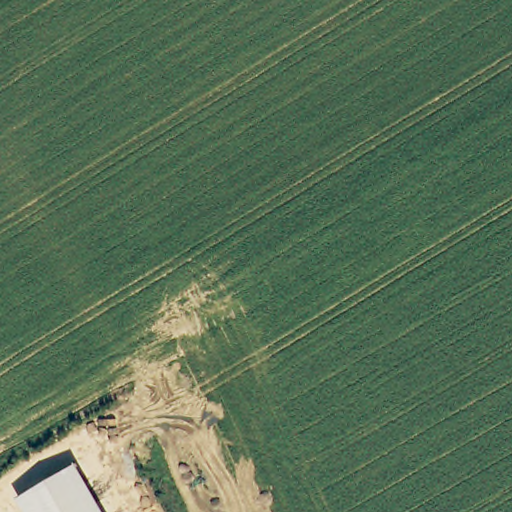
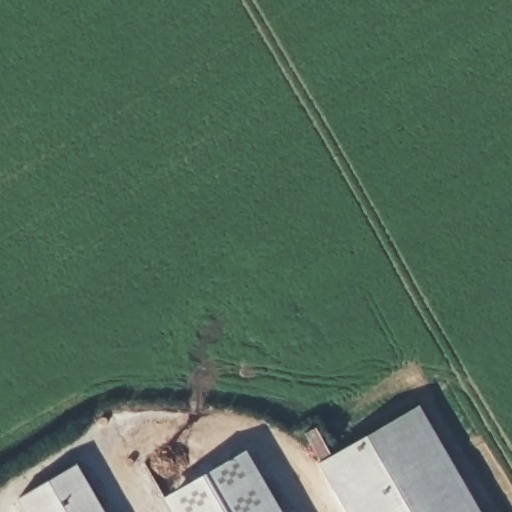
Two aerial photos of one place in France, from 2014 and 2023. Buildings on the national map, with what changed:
new [(482,512),(352,512),(322,459),(422,405),(482,512)]
new [(267,512),(189,512),(178,493),(237,460),(267,512)]
unchanged [(78,465),(105,512),(27,512),(19,498),(78,465)]

